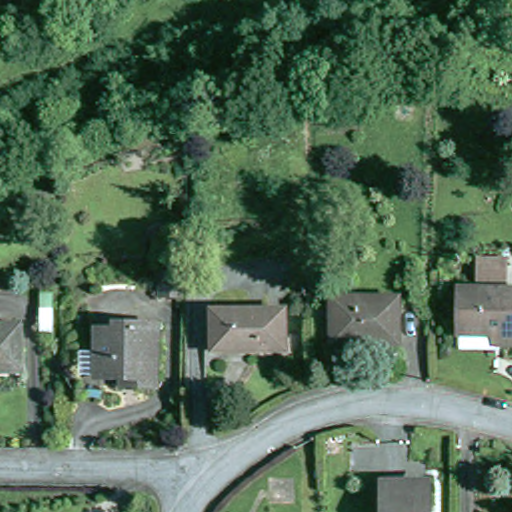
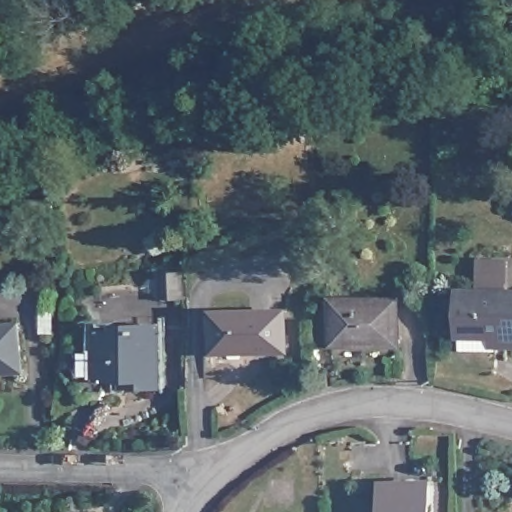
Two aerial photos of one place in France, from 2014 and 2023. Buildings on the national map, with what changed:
unchanged [(462,350),(462,333),(460,333),(461,288),(478,288),(479,258),(508,259),(507,288),(512,288),(512,344),(505,344),(505,334),(495,334),(495,350),(462,350)]
unchanged [(402,305),(401,346),(337,347),(339,305),(402,305)]
unchanged [(217,314),(288,313),(287,352),(252,353),(252,349),(216,349),(217,314)]
unchanged [(137,371),(110,371),(110,368),(92,367),(92,348),(110,348),(110,326),(129,326),(129,321),(171,320),(169,381),(149,381),(137,382),(137,371)]
unchanged [(29,371),(0,372),(0,327),(27,326),(29,371)]
unchanged [(434,482),(434,512),(392,512),(392,483),(434,482)]

